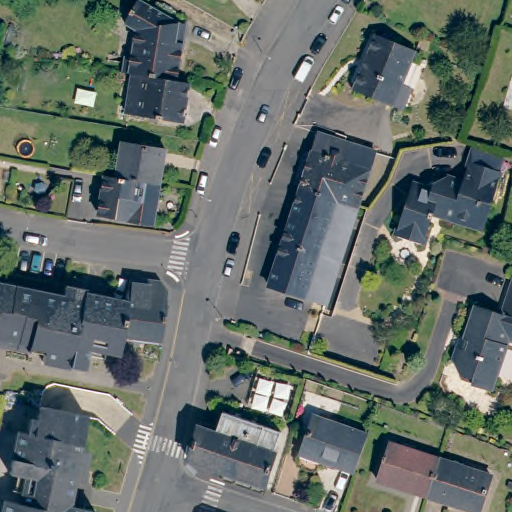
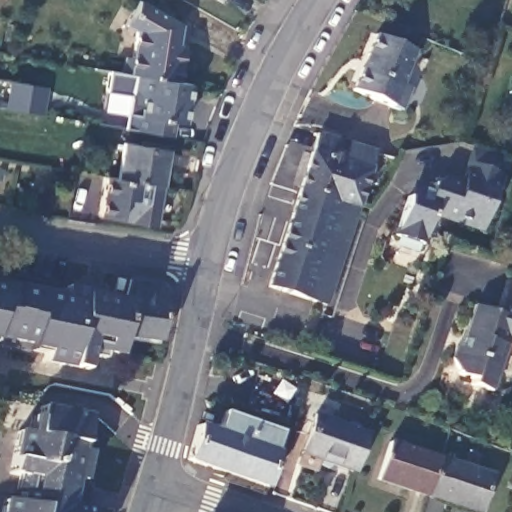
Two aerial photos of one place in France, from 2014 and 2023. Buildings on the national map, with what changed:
unchanged [(191,21),(187,40),(182,77),(138,70),(128,68),(130,52),(137,54),(142,26),(130,20),(140,0),(150,0),(183,20),(191,21)]
unchanged [(376,25),(386,30),(415,41),(402,75),(411,79),(402,100),(401,100),(354,81),(376,25)]
unchanged [(188,119),(131,109),(138,70),(182,77),(194,80),(188,119)]
new [(11,81),(49,86),(43,110),(6,105),(11,81)]
unchanged [(319,134),(377,152),(359,205),(301,187),(319,134)]
unchanged [(123,144),(166,151),(160,185),(117,178),(123,144)]
unchanged [(427,193),(430,184),(442,177),(459,182),(465,162),(496,171),(492,191),(480,230),(430,214),(425,231),(420,245),(392,235),(397,222),(405,196),(417,190),(427,193)]
unchanged [(106,176),(117,178),(160,185),(153,225),(99,216),(106,176)]
unchanged [(317,302),(295,295),(269,286),(301,189),(301,187),(359,205),(358,206),(355,217),(332,288),(326,305),(317,302)]
unchanged [(512,269),(512,343),(504,340),(487,391),(466,384),(468,379),(455,375),(448,359),(452,346),(456,347),(471,305),(497,314),(510,276),(512,269)]
unchanged [(136,284),(168,288),(173,296),(166,345),(128,340),(133,306),(129,306),(136,284)]
unchanged [(68,300),(89,304),(91,296),(129,306),(133,306),(128,340),(127,345),(125,359),(111,356),(95,353),(93,360),(91,374),(49,365),(50,360),(51,350),(0,339),(0,286),(68,300)]
unchanged [(15,406),(49,412),(97,422),(91,455),(85,485),(79,512),(0,512),(0,463),(6,433),(10,433),(15,406)]
unchanged [(198,430),(217,436),(224,417),(281,437),(274,457),(276,457),(266,492),(188,464),(198,430)]
unchanged [(310,421),(363,440),(351,477),(297,458),(310,421)]
unchanged [(389,442),(441,459),(428,496),(377,479),(389,442)]
unchanged [(441,459),(492,476),(480,512),(476,512),(428,496),(441,459)]

